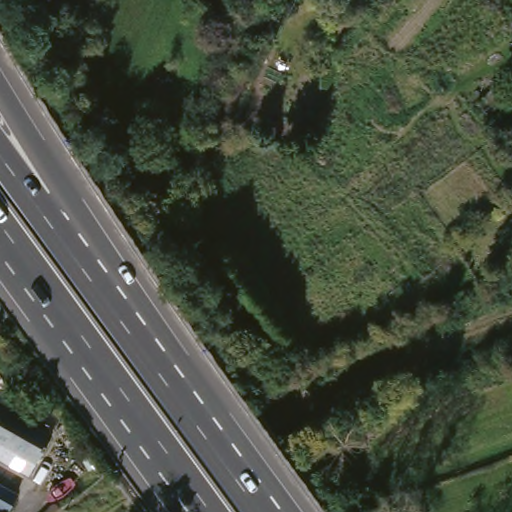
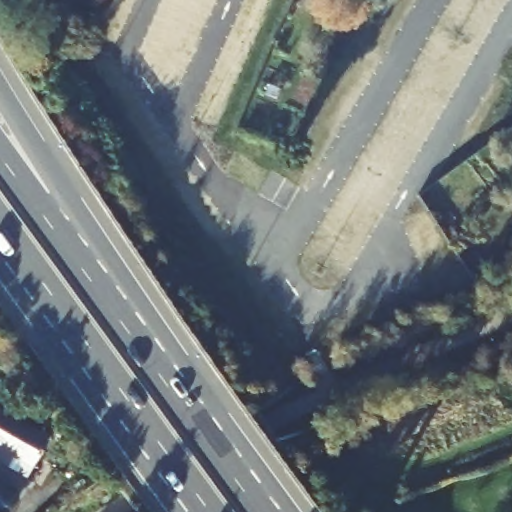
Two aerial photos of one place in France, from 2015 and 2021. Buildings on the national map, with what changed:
unchanged [(41,464),(31,457),(34,452),(22,445),(19,451),(5,444),(7,438),(0,434),(0,396),(60,431),(41,464)]
unchanged [(19,510),(0,500),(0,474),(30,492),(19,510)]

